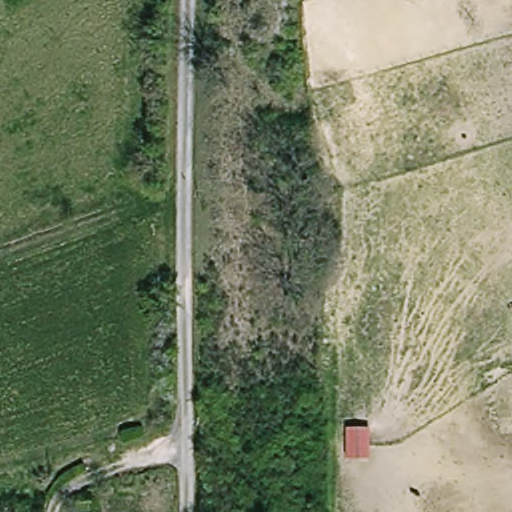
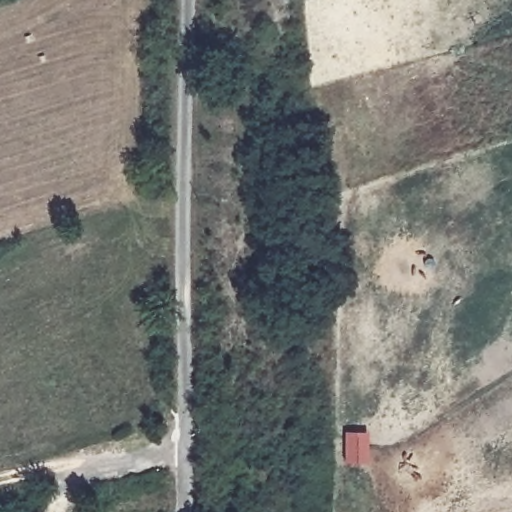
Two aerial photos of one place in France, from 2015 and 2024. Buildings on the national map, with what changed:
unchanged [(368,431),(368,461),(345,461),(345,432),(368,431)]

